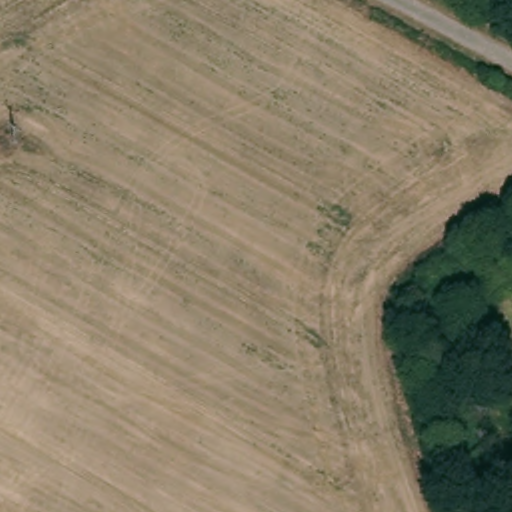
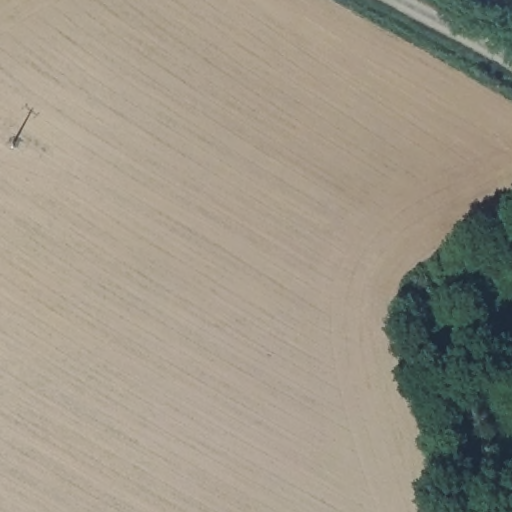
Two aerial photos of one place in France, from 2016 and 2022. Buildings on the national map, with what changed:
[]

